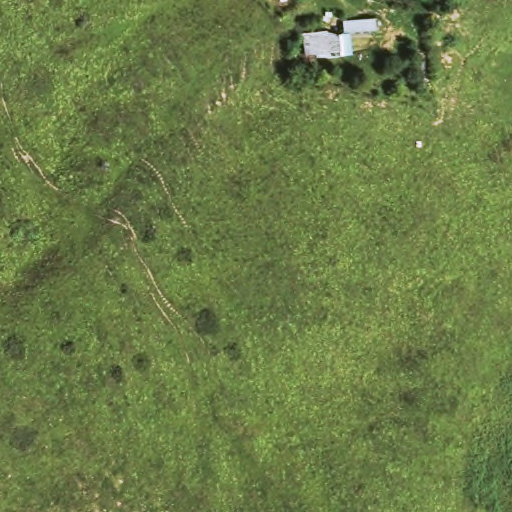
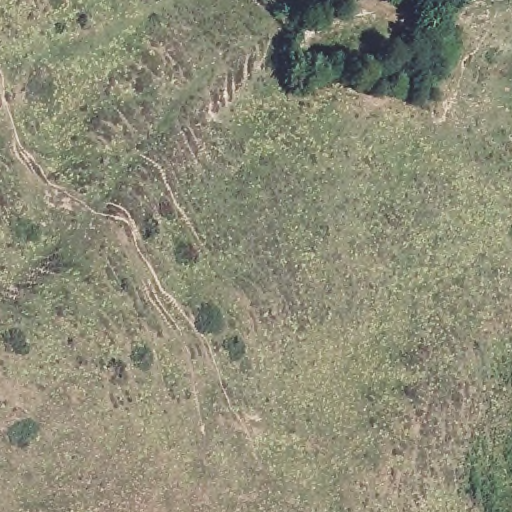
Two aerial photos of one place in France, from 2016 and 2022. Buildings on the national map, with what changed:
unchanged [(304,55),(302,31),(350,26),(354,50),(304,55)]

